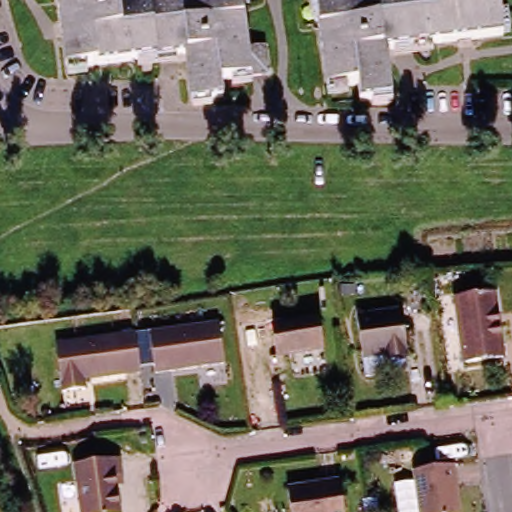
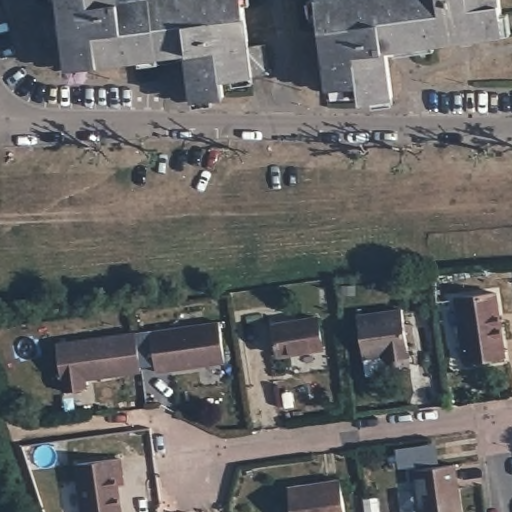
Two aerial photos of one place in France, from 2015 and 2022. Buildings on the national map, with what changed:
unchanged [(265,45),(268,74),(220,80),(222,96),(190,100),(184,56),(115,63),(66,69),(59,15),(57,0),(117,0),(241,0),(247,47),(265,45)]
unchanged [(482,36),(386,49),(391,95),(358,99),(357,81),(327,85),(325,72),(316,0),(497,0),(501,35),(482,36)]
unchanged [(500,357),(460,362),(452,298),(492,294),(500,357)]
unchanged [(382,350),(382,345),(375,346),(360,348),(358,340),(355,313),(401,307),(405,342),(406,347),(382,350)]
unchanged [(321,346),(278,352),(274,320),(317,315),(321,346)]
unchanged [(225,356),(156,366),(152,327),(219,317),(225,356)]
unchanged [(86,389),(62,391),(57,344),(136,335),(140,372),(85,378),(86,389)]
unchanged [(120,475),(115,476),(119,512),(80,512),(74,465),(117,459),(120,475)]
unchanged [(460,512),(420,512),(414,468),(453,463),(460,512)]
unchanged [(341,512),(289,512),(285,485),(337,478),(341,512)]

